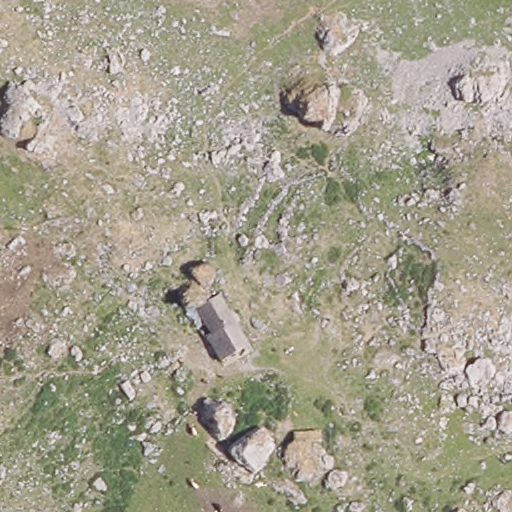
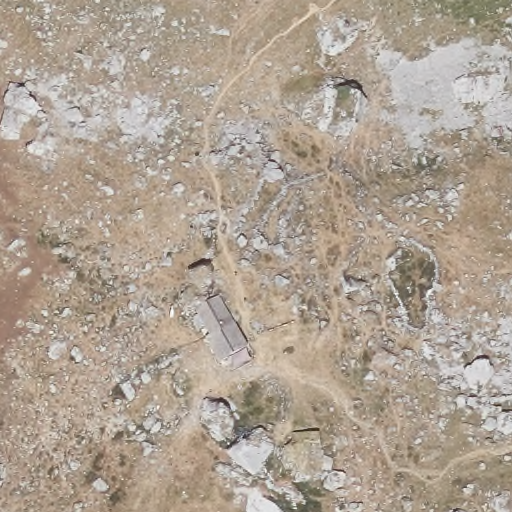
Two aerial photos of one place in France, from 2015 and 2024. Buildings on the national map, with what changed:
unchanged [(222,297),(248,349),(222,364),(206,336),(210,334),(197,310),(222,297)]

